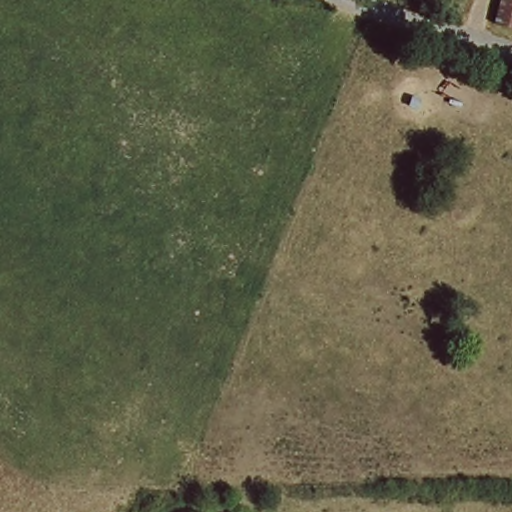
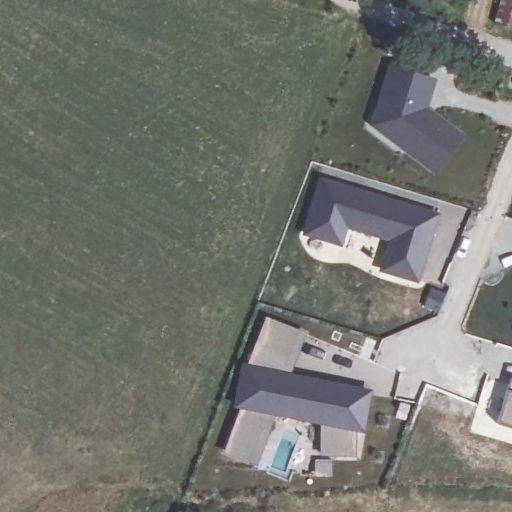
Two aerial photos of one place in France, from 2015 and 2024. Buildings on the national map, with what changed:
unchanged [(512,32),(509,44),(487,37),(494,10),(512,14),(512,32)]
new [(371,128),(393,65),(437,78),(429,106),(465,134),(436,175),(371,128)]
new [(388,241),(347,229),(340,246),(304,235),(320,179),(441,213),(418,283),(380,272),(388,241)]
new [(224,452),(240,408),(234,407),(242,364),(248,365),(266,317),(307,333),(290,376),(371,389),(363,432),(355,430),(355,456),(320,456),(320,424),(275,416),(257,465),(224,452)]
new [(510,386),(512,386),(512,426),(499,422),(510,386)]

